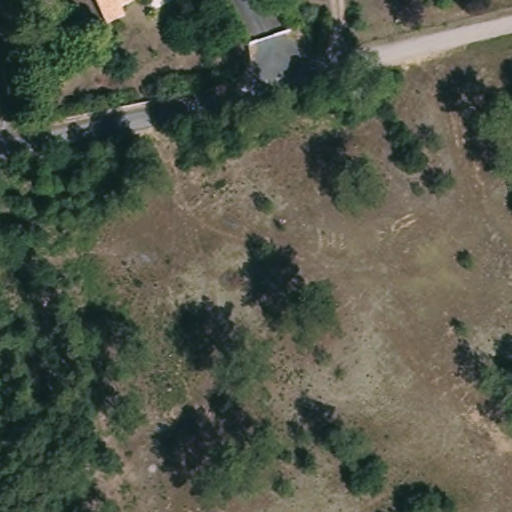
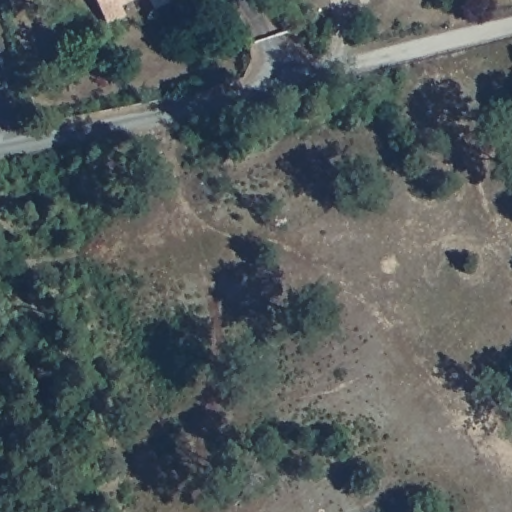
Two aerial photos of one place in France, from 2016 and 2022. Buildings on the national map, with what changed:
unchanged [(123,3),(130,17),(113,26),(100,0),(130,0),(123,3)]

